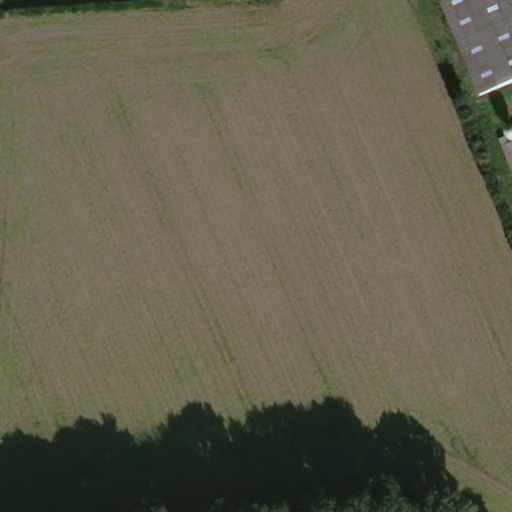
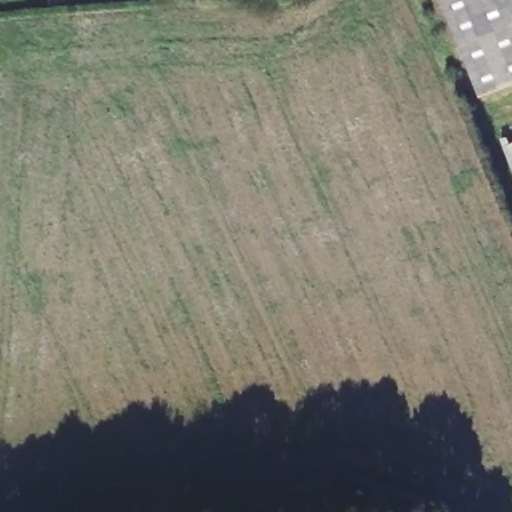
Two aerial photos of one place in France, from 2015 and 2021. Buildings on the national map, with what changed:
unchanged [(484,97),(443,0),(512,0),(512,86),(484,97)]
unchanged [(512,141),(512,166),(503,144),(512,141)]

